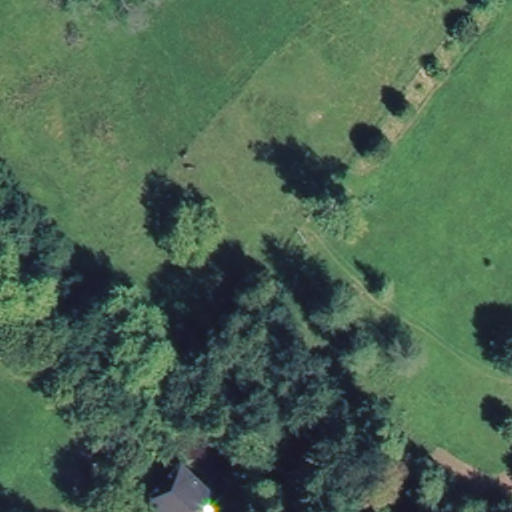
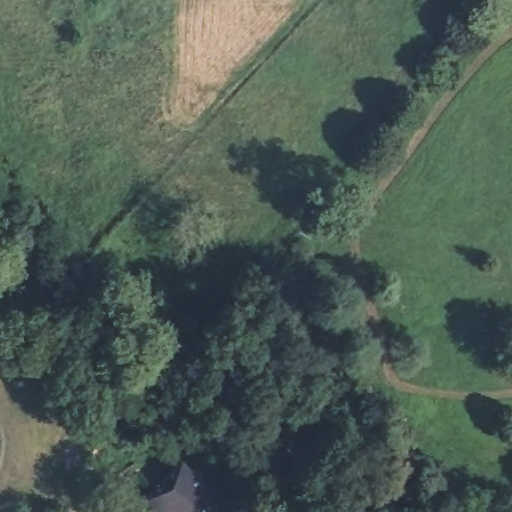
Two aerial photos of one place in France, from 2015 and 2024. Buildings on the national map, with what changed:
unchanged [(197,512),(137,512),(131,507),(163,466),(204,502),(197,512)]

